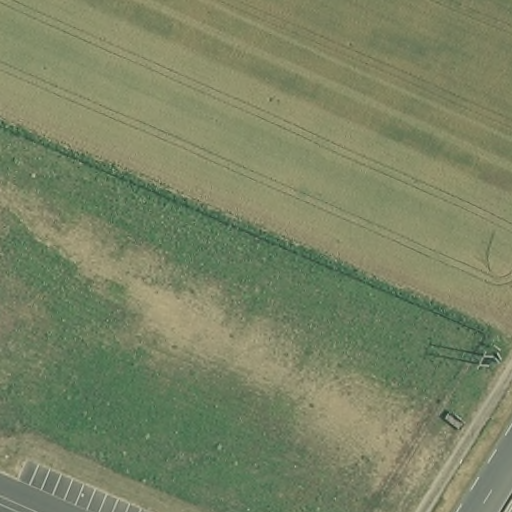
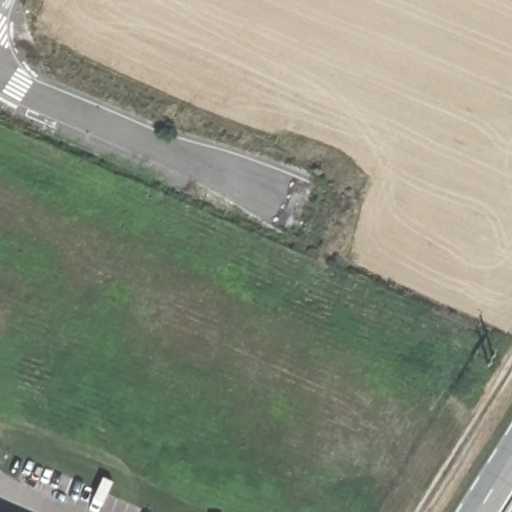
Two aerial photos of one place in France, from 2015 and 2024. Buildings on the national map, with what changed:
[]

